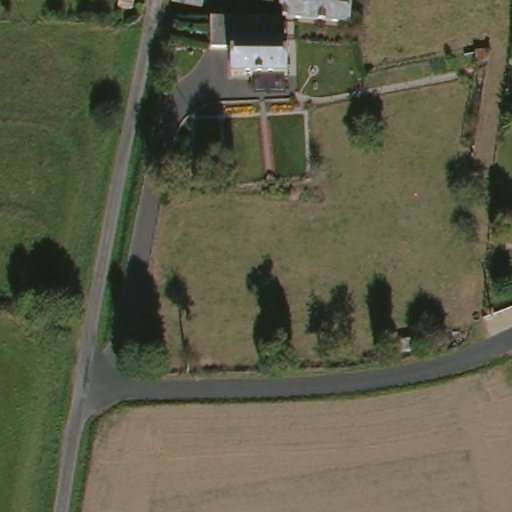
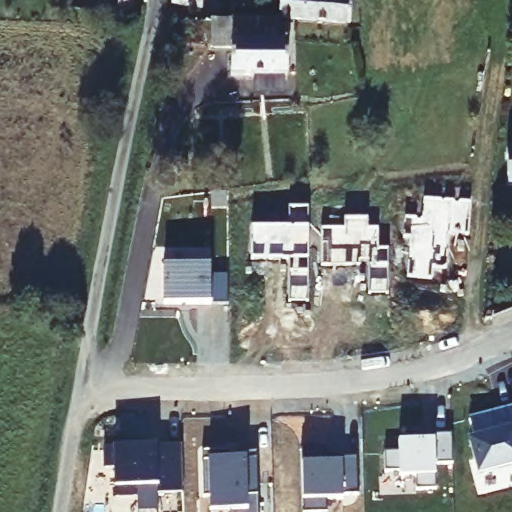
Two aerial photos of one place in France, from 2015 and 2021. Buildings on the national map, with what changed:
unchanged [(131,12),(119,9),(120,0),(134,0),(131,12)]
unchanged [(171,5),(172,0),(203,0),(203,7),(171,5)]
unchanged [(257,5),(257,0),(270,0),(269,7),(257,5)]
unchanged [(274,20),(276,0),(346,0),(344,25),(274,20)]
unchanged [(254,76),(225,76),(226,45),(209,44),(211,15),(227,16),(237,17),(245,17),(274,20),(273,37),(272,46),(283,46),(282,76),(283,94),(254,94),(254,76)]
new [(165,265),(213,265),(213,275),(230,276),(229,303),(165,303),(165,265)]
new [(475,437),(470,417),(500,410),(501,413),(510,411),(509,407),(512,406),(512,463),(479,472),(470,440),(475,437)]
new [(398,451),(398,441),(422,441),(422,435),(452,434),(452,464),(435,464),(436,489),(416,490),(415,475),(399,476),(399,471),(385,472),(384,452),(398,451)]
new [(117,438),(131,438),(132,443),(156,443),(181,442),(181,446),(182,490),(156,490),(156,483),(135,483),(136,492),(114,493),(114,465),(104,465),(103,444),(118,443),(117,438)]
new [(232,457),(237,457),(237,450),(258,449),(259,512),(230,512),(230,508),(210,508),(210,494),(204,494),(203,447),(225,447),(232,447),(232,457)]
new [(342,456),(359,456),(359,493),(344,494),(344,498),(328,498),(328,512),(315,512),(303,512),(302,447),(326,447),(326,457),(342,456)]

